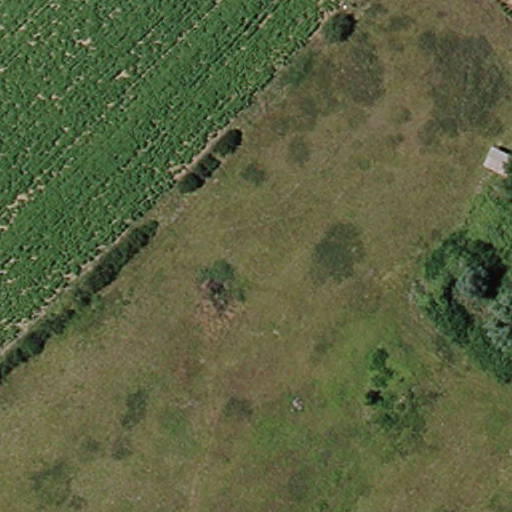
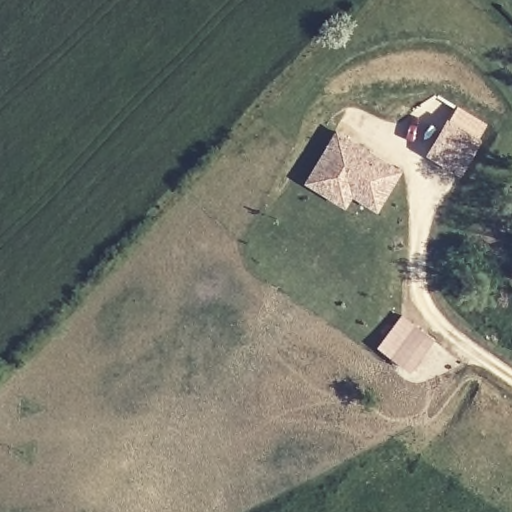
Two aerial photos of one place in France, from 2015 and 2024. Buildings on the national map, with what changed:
new [(432,156),(449,127),(479,144),(462,172),(443,162),(432,156)]
new [(358,146),(355,152),(365,158),(368,154),(399,173),(377,210),(352,195),(344,207),(320,191),(335,169),(322,161),(338,135),(358,146)]
new [(377,347),(402,314),(436,340),(411,372),(377,347)]

